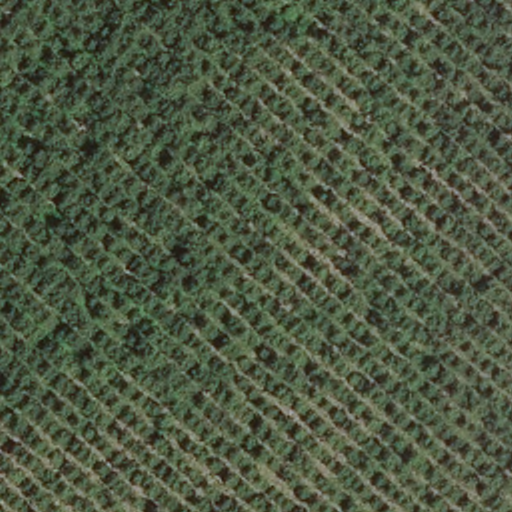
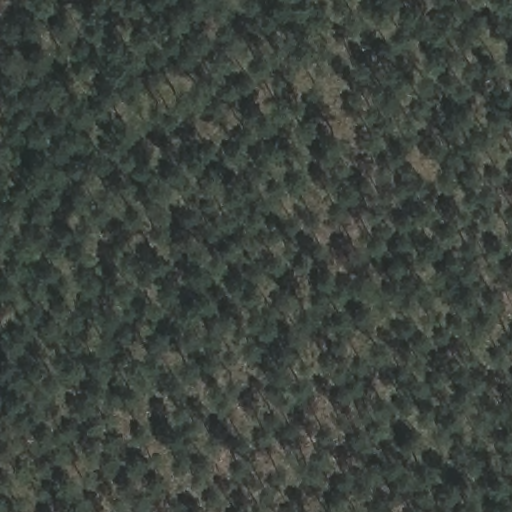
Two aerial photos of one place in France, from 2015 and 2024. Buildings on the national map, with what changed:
[]

